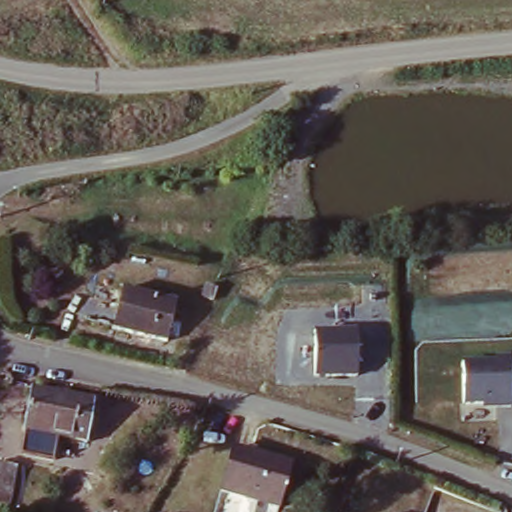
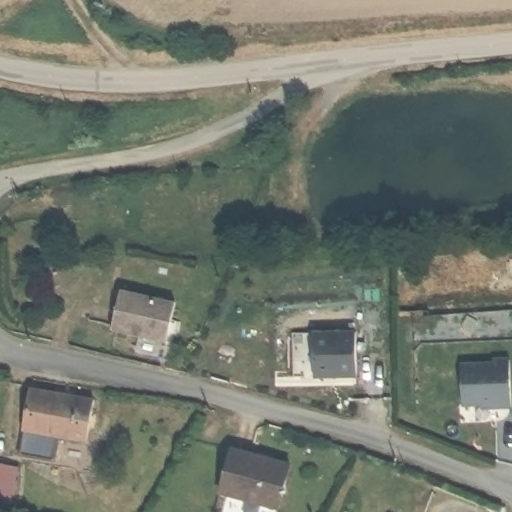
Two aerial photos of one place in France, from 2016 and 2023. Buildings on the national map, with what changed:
unchanged [(166,340),(113,330),(121,287),(173,296),(166,340)]
unchanged [(360,328),(360,374),(316,376),(316,327),(360,328)]
unchanged [(460,363),(492,362),(492,358),(508,358),(509,406),(492,406),(492,402),(460,403),(460,363)]
unchanged [(28,386),(90,400),(83,443),(36,435),(19,430),(28,386)]
unchanged [(288,465),(277,509),(220,492),(231,450),(288,465)]

